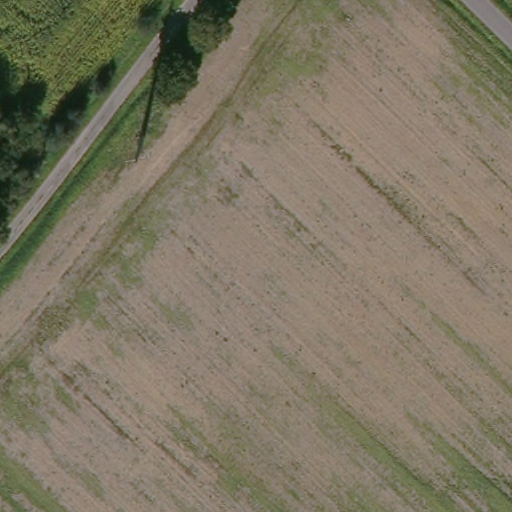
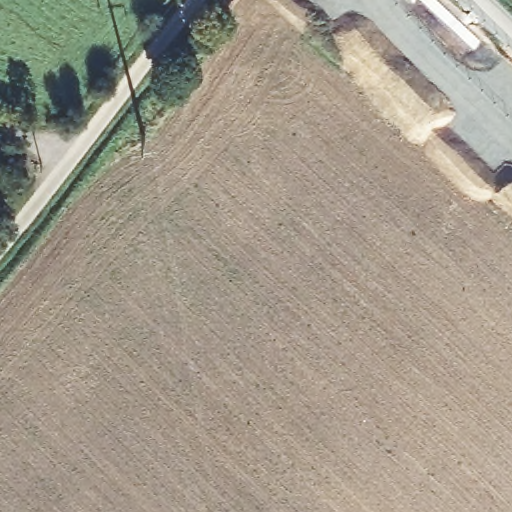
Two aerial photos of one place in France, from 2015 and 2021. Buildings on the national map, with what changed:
[]

